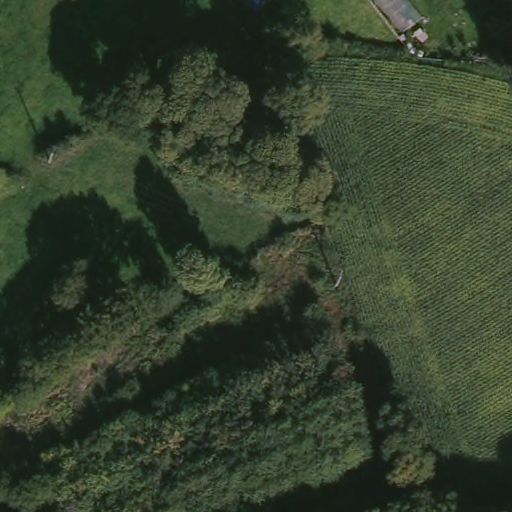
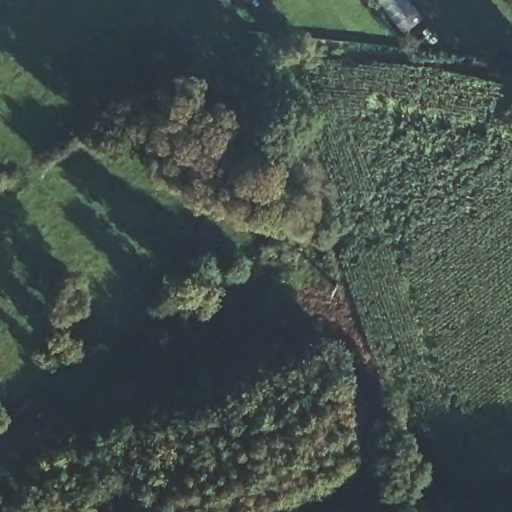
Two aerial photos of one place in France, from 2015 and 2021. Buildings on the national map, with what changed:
unchanged [(247,0),(273,0),(258,12),(247,0)]

